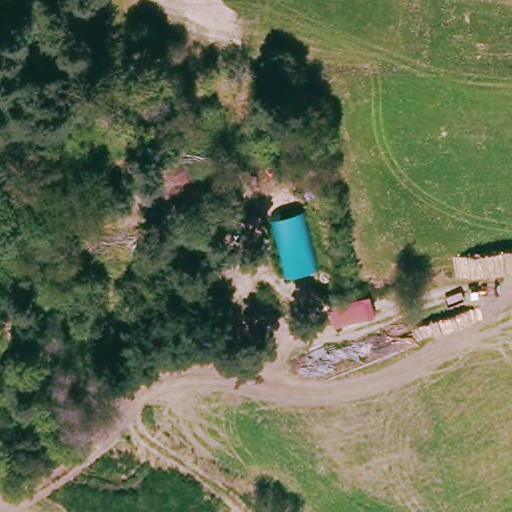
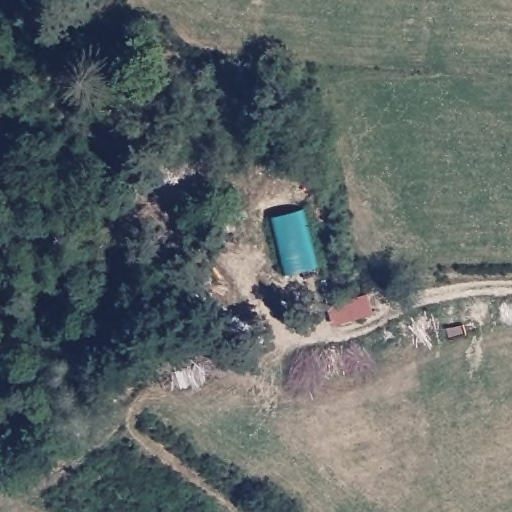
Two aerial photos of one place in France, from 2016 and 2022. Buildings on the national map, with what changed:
unchanged [(271,218),(306,210),(318,268),(284,276),(271,218)]

